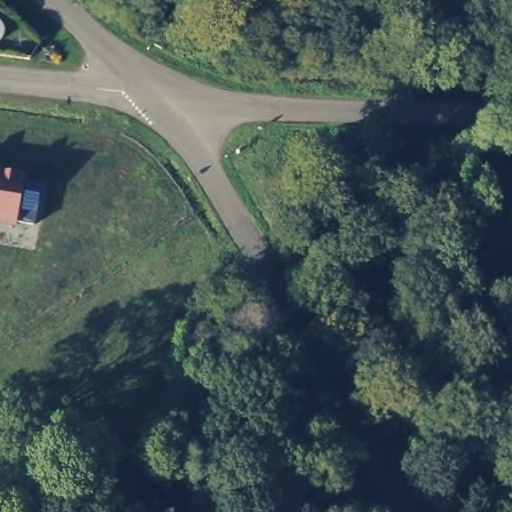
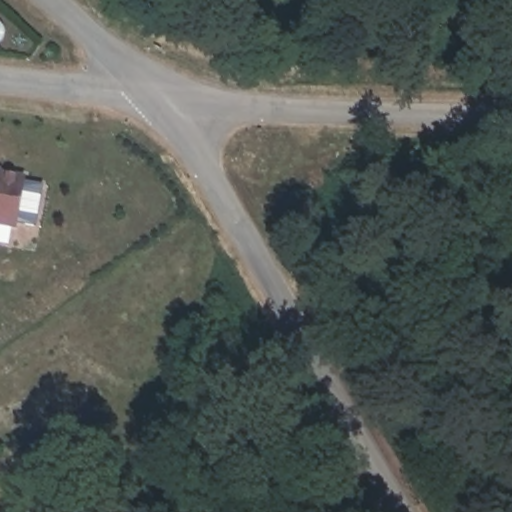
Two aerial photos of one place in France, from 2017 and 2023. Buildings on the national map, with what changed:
unchanged [(1,177),(5,173),(22,178),(14,226),(0,224),(0,177),(1,177)]

